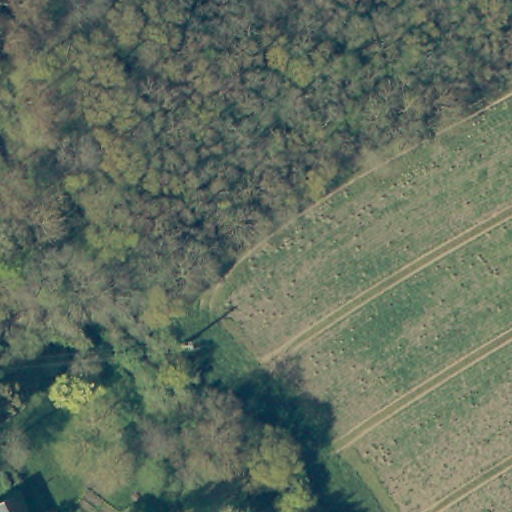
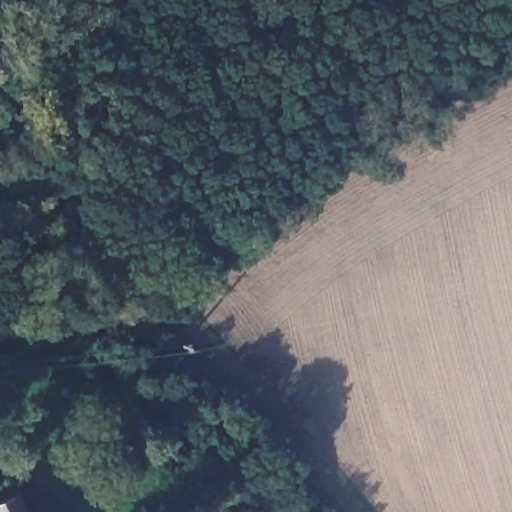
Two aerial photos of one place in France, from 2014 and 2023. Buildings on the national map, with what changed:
unchanged [(25,512),(0,512),(0,496),(15,489),(25,512)]

